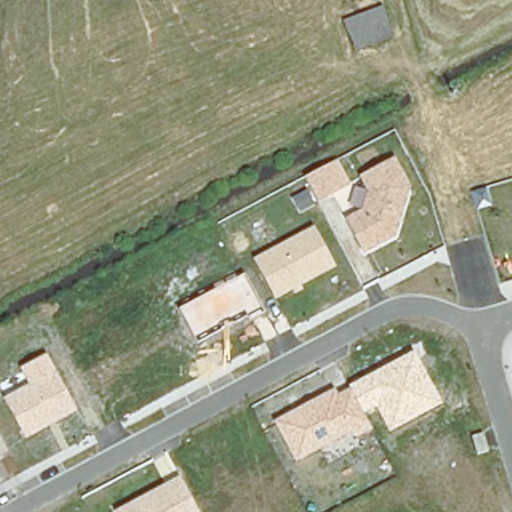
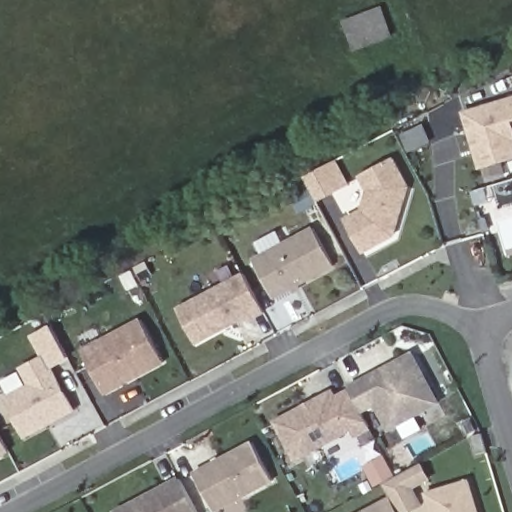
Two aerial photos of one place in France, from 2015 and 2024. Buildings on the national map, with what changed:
unchanged [(383,5),(394,35),(355,50),(343,21),(383,5)]
new [(475,167),(459,112),(512,96),(512,156),(475,167)]
unchanged [(412,190),(397,235),(363,254),(345,218),(361,211),(368,189),(360,175),(395,157),(412,190)]
unchanged [(320,201),(308,177),(338,161),(351,183),(320,201)]
unchanged [(275,298),(253,258),(314,226),(336,266),(275,298)]
unchanged [(199,345),(179,307),(246,273),(266,313),(199,345)]
new [(135,320),(158,362),(99,393),(96,388),(76,352),(83,348),(135,320)]
unchanged [(40,356),(28,333),(45,324),(62,355),(44,365),(71,412),(17,439),(0,406),(0,395),(21,384),(13,370),(40,356)]
unchanged [(349,386),(415,351),(442,403),(389,432),(376,406),(363,412),(350,388),(349,386)]
unchanged [(363,412),(372,428),(354,439),(351,432),(296,462),(273,420),(334,387),(337,395),(350,388),(363,412)]
new [(210,511),(190,472),(248,442),(268,480),(210,511)]
new [(0,443),(4,451),(0,453),(0,443)]
new [(416,464),(423,477),(406,486),(416,506),(404,512),(395,512),(387,498),(379,484),(416,464)]
unchanged [(198,512),(115,512),(179,476),(198,512)]
new [(477,512),(432,512),(427,496),(469,483),(477,512)]
new [(387,498),(395,512),(363,512),(387,498)]

